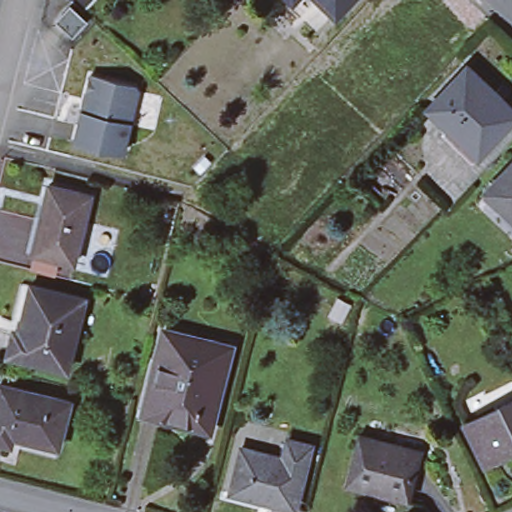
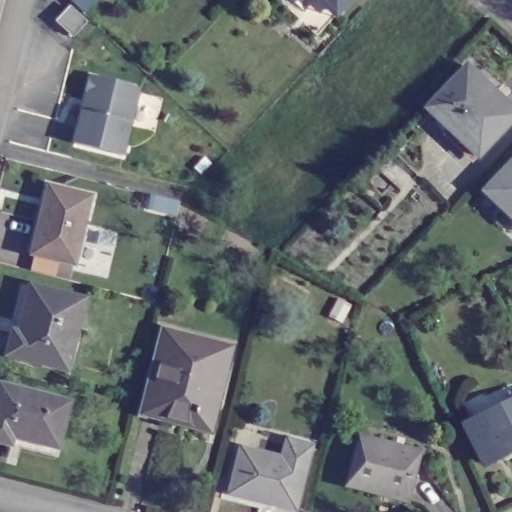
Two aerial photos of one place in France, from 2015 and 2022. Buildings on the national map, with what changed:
unchanged [(319,0),(350,0),(335,15),(319,0)]
unchanged [(85,20),(72,34),(57,20),(71,7),(85,20)]
unchanged [(512,118),(478,155),(428,107),(467,64),(512,106),(512,118)]
unchanged [(74,143),(82,110),(85,95),(90,75),(134,85),(138,91),(122,155),(74,143)]
unchanged [(512,158),(512,204),(489,182),(512,158)]
unchanged [(74,262),(32,251),(50,185),(90,195),(74,262)]
unchanged [(68,369),(8,354),(14,333),(8,331),(20,283),(85,300),(68,369)]
unchanged [(218,366),(210,364),(204,388),(216,391),(208,423),(142,407),(158,340),(172,345),(176,332),(223,344),(218,366)]
unchanged [(57,455),(0,441),(0,385),(0,383),(70,400),(57,455)]
unchanged [(467,420),(512,399),(512,448),(485,460),(467,420)]
unchanged [(407,501),(346,484),(358,436),(420,453),(407,501)]
unchanged [(287,445),(312,451),(297,512),(288,512),(230,496),(242,450),(282,461),(287,445)]

